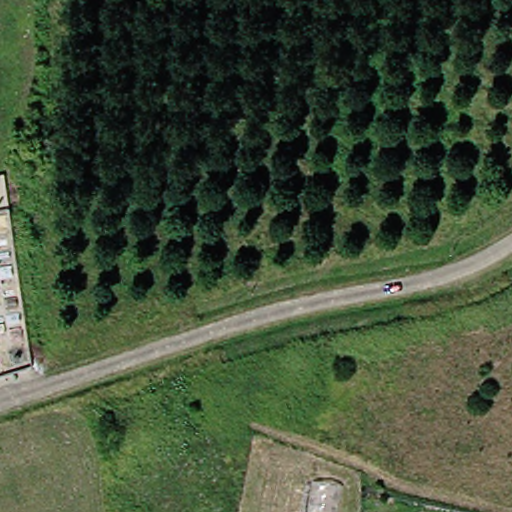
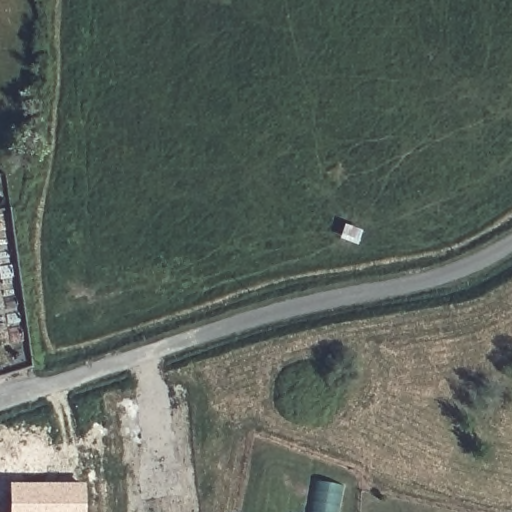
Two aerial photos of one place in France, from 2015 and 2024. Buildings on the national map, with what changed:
new [(84,512),(9,512),(9,482),(84,483),(84,512)]

